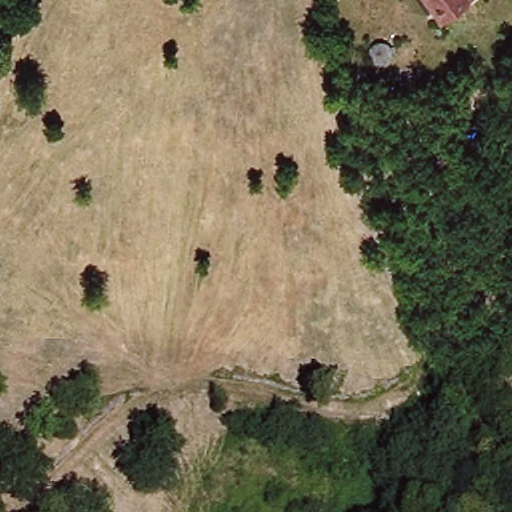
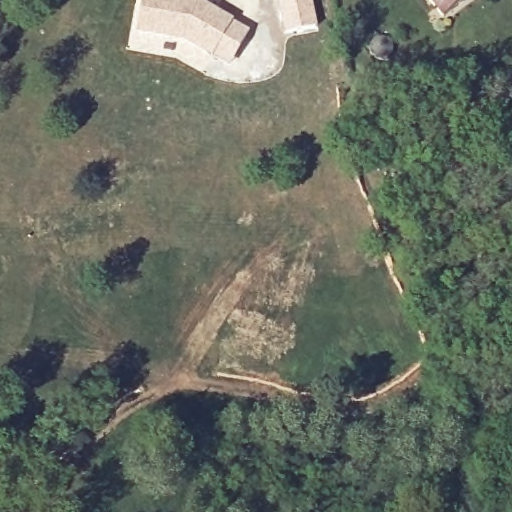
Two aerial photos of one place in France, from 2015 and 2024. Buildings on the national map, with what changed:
new [(200,0),(250,29),(229,67),(187,46),(132,35),(140,0),(200,0)]
new [(284,36),(276,0),(313,0),(319,27),(284,36)]
unchanged [(424,0),(469,0),(436,20),(424,0)]
unchanged [(395,49),(395,55),(390,60),(385,62),(379,61),(374,57),(372,51),(372,46),(377,41),(382,38),(389,39),(394,43),(395,49)]

